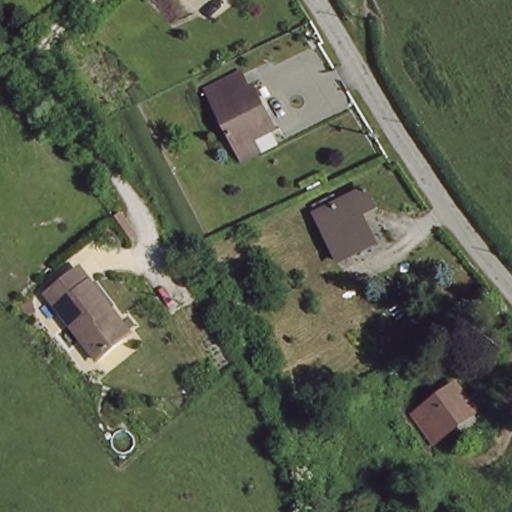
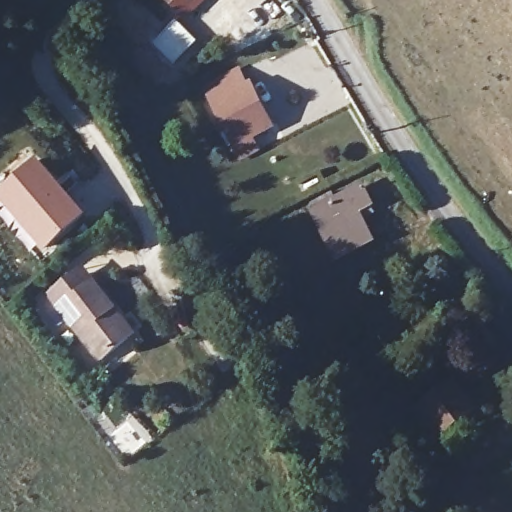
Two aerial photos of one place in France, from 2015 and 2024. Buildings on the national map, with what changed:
unchanged [(244,89),(249,85),(270,131),(250,140),(256,156),(240,163),(204,91),(234,70),(244,89)]
new [(87,214),(41,250),(0,203),(0,190),(38,159),(87,214)]
unchanged [(369,202),(352,211),(362,233),(331,250),(310,209),(359,184),(369,202)]
unchanged [(135,337),(106,360),(54,297),(76,279),(87,270),(104,292),(119,309),(139,334),(135,337)]
unchanged [(416,410),(428,401),(458,378),(480,409),(451,431),(437,442),(416,410)]

